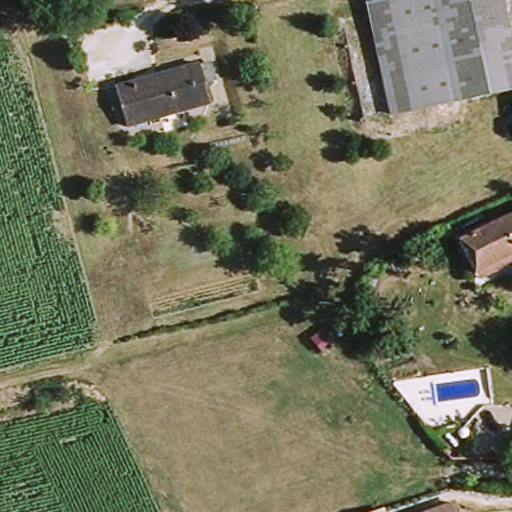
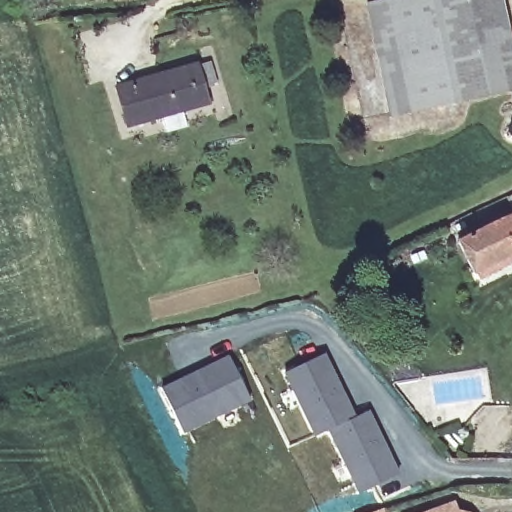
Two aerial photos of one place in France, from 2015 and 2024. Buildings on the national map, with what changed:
unchanged [(401,0),(498,0),(512,72),(512,94),(407,114),(386,3),(401,0)]
unchanged [(407,114),(387,117),(366,6),(386,3),(407,114)]
unchanged [(116,87),(195,67),(204,110),(125,130),(116,87)]
unchanged [(512,219),(512,264),(485,278),(468,242),(512,219)]
new [(326,351),(357,415),(370,408),(401,472),(357,492),(327,430),(315,436),(283,371),(326,351)]
new [(228,353),(251,399),(183,432),(161,386),(228,353)]
unchanged [(453,508),(455,512),(435,512),(452,505),(453,508)]
new [(386,512),(368,512),(384,506),(386,512)]

